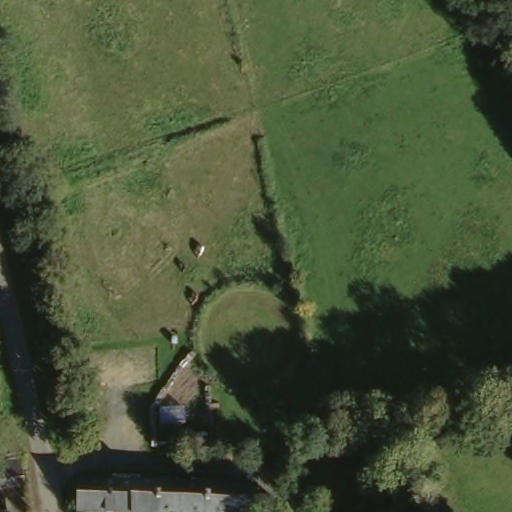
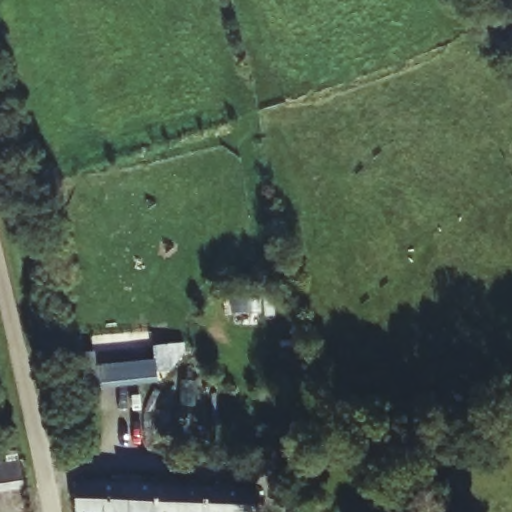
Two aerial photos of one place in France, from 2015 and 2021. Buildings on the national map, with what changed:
new [(157,359),(159,382),(93,388),(91,365),(157,359)]
unchanged [(19,469),(23,493),(0,498),(0,472),(19,469)]
unchanged [(61,512),(59,488),(252,482),(256,489),(257,512),(61,512)]

